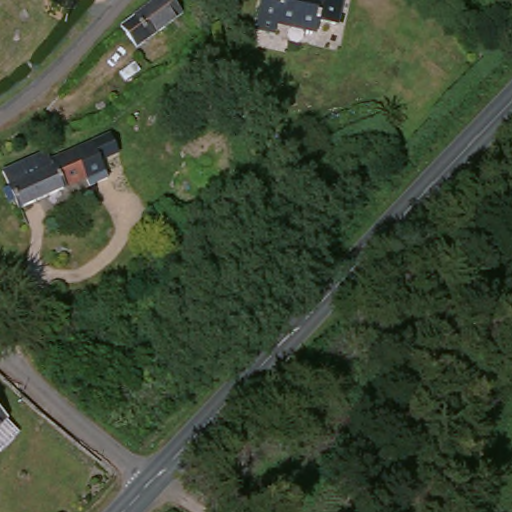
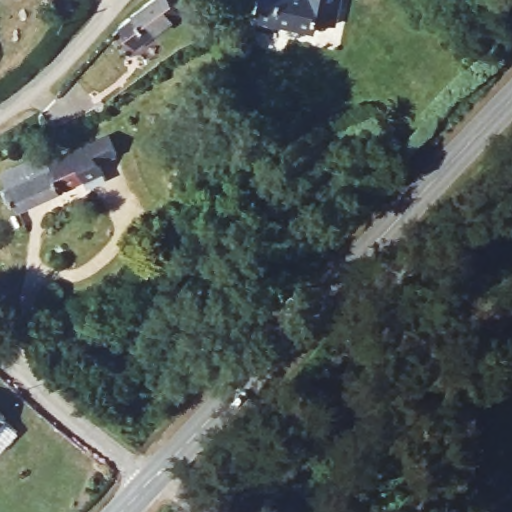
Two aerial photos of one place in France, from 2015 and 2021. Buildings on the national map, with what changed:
unchanged [(333,33),(315,30),(313,39),(271,30),(268,40),(250,36),(259,0),(271,0),(281,2),(281,0),(296,0),(308,2),(309,0),(342,0),(333,33)]
unchanged [(169,1),(182,19),(145,45),(146,47),(129,59),(118,44),(134,26),(169,1)]
unchanged [(47,166),(87,146),(104,179),(85,188),(80,182),(11,217),(10,216),(0,196),(0,177),(42,156),(47,166)]
unchanged [(0,430),(0,403),(14,415),(0,430)]

